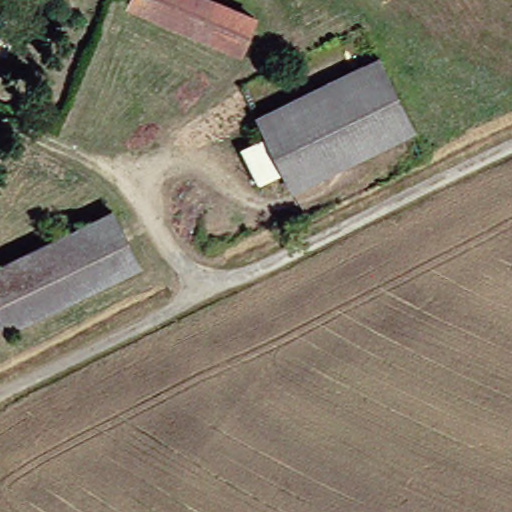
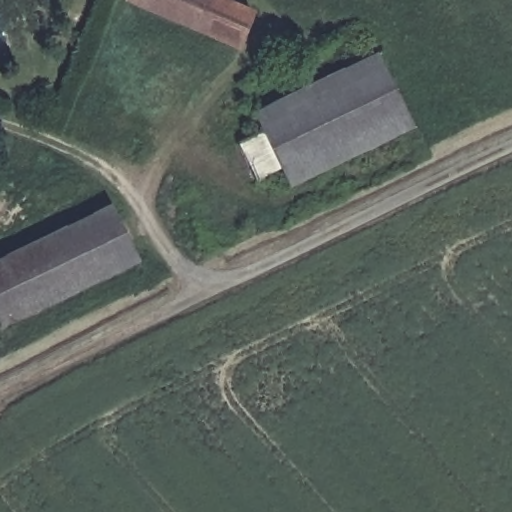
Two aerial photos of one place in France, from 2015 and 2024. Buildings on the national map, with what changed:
unchanged [(243,9),(229,43),(127,0),(222,0),(243,9)]
unchanged [(246,108),(368,50),(403,124),(282,181),(272,162),(256,127),(246,108)]
unchanged [(249,174),(231,139),(256,127),(272,162),(249,174)]
unchanged [(129,261),(0,324),(0,257),(103,207),(129,261)]

